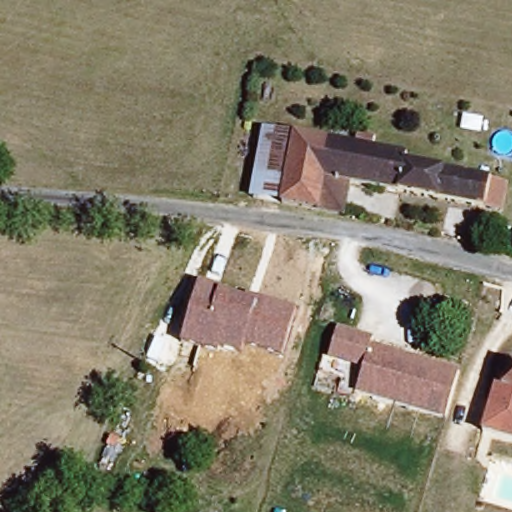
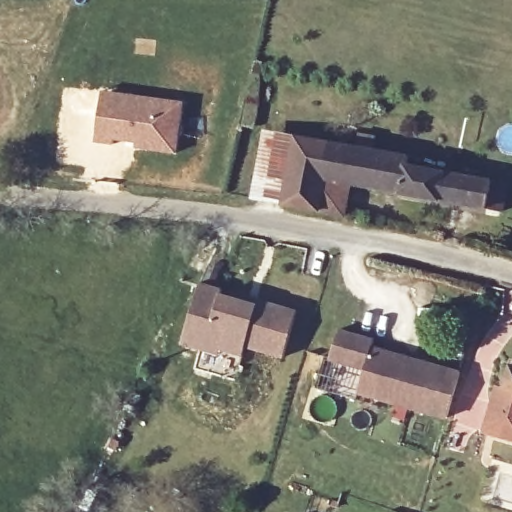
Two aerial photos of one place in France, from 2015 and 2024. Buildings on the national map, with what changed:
new [(176,154),(135,149),(135,142),(115,140),(113,146),(95,144),(101,91),(182,102),(176,154)]
unchanged [(320,207),(252,197),(265,130),(350,144),(353,129),(369,132),(367,146),(427,155),(425,167),(503,182),(499,210),(354,186),(348,211),(320,207)]
unchanged [(198,280),(225,287),(223,293),(255,301),(256,296),(297,307),(285,356),(247,346),(245,355),(220,348),(219,354),(182,345),(198,280)]
unchanged [(317,386),(325,355),(330,356),(338,330),(345,332),(375,340),(373,346),(407,356),(405,365),(415,368),(417,360),(460,372),(447,417),(359,392),(358,398),(320,387),(317,386)]
unchanged [(511,362),(512,363),(512,439),(482,431),(495,385),(505,387),(511,362)]

